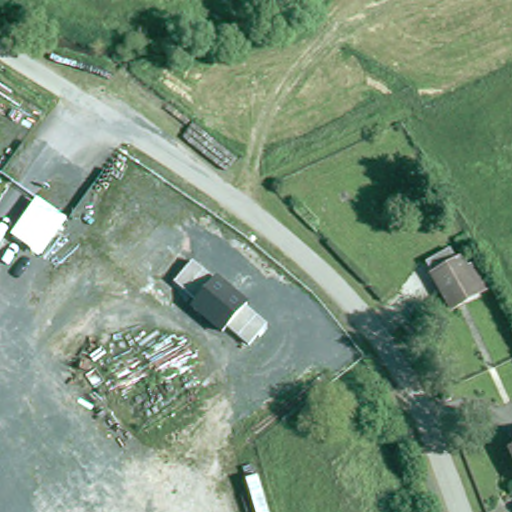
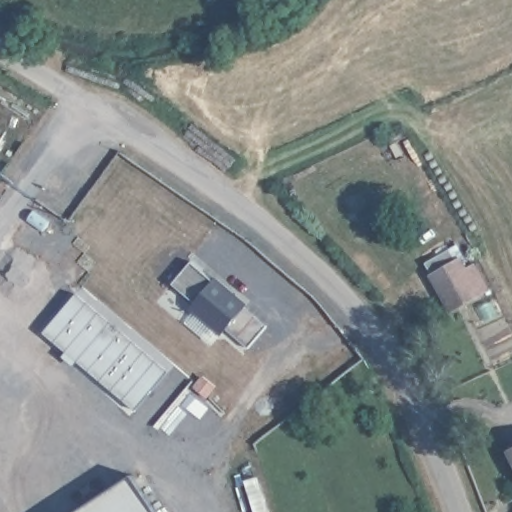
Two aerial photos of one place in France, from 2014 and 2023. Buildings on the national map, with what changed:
unchanged [(67,218),(41,257),(10,236),(35,199),(67,218)]
unchanged [(462,258),(478,292),(450,305),(433,271),(462,258)]
unchanged [(214,280),(216,276),(249,303),(246,306),(269,323),(249,347),(226,329),(222,334),(192,308),(196,303),(173,286),(191,260),(214,280)]
new [(78,360),(74,365),(63,355),(67,351),(43,332),(76,292),(168,371),(134,409),(78,360)]
unchanged [(511,448),(512,448),(512,452),(511,448)]
new [(76,512),(132,475),(157,512),(76,512)]

